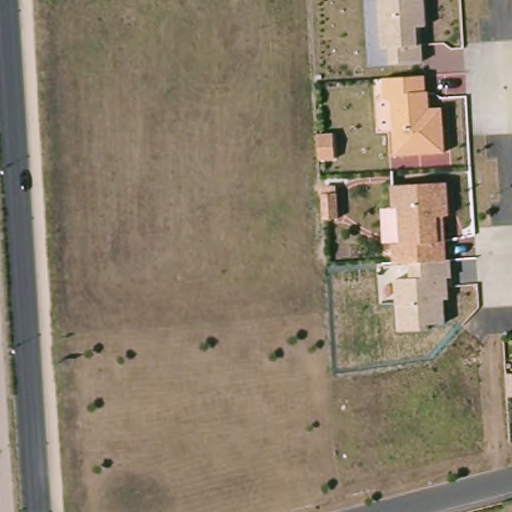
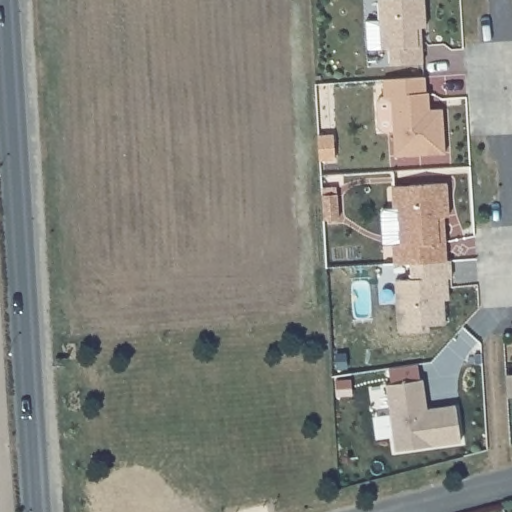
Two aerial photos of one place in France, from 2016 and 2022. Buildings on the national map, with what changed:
unchanged [(419,26),(421,61),(389,64),(388,46),(381,48),(378,0),(423,0),(424,26),(419,26)]
unchanged [(427,73),(429,89),(433,88),(433,106),(447,105),(448,149),(396,153),(392,93),(385,93),(384,78),(427,73)]
unchanged [(449,215),(443,216),(448,298),(444,298),(445,325),(399,330),(396,279),(410,278),(409,262),(393,263),(391,242),(399,242),(396,206),(392,207),(390,187),(446,182),(449,215)]
new [(424,397),(427,408),(455,404),(461,441),(395,450),(386,384),(422,379),(424,397)]

